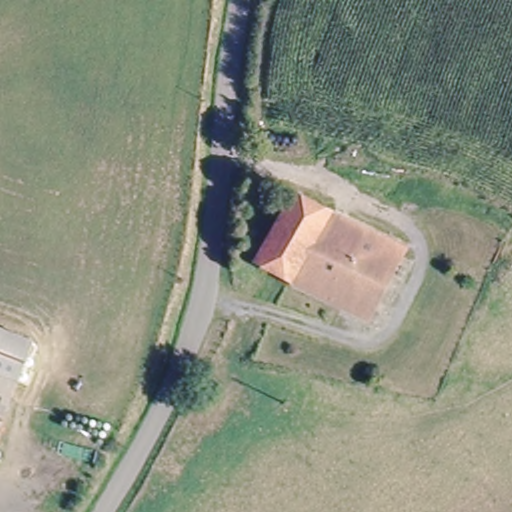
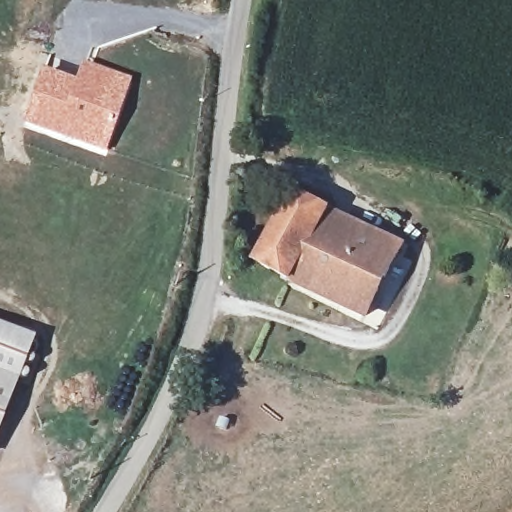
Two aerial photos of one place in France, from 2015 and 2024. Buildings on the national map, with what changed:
new [(40,71),(74,81),(80,66),(131,82),(104,155),(20,125),(40,71)]
unchanged [(374,240),(386,218),(413,235),(402,257),(366,321),(260,257),(296,193),(374,240)]
unchanged [(30,336),(15,379),(0,373),(0,325),(30,336)]
unchanged [(15,379),(0,422),(0,373),(15,379)]

